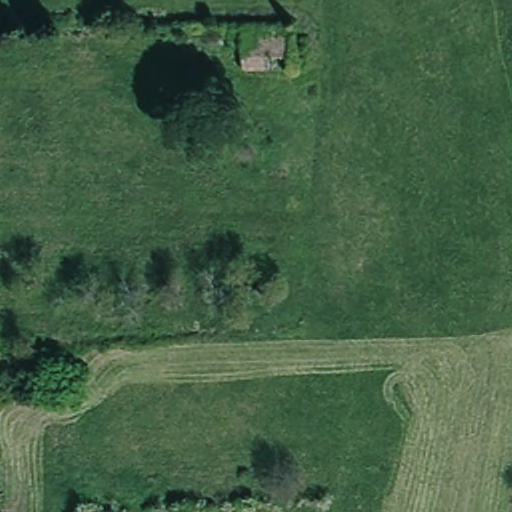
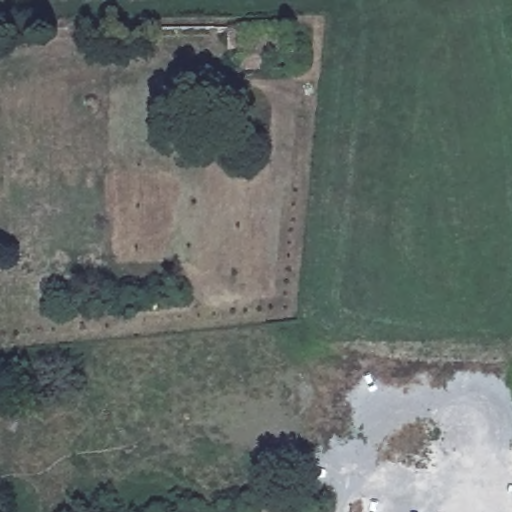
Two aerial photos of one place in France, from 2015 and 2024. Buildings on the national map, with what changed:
unchanged [(292,29),(285,73),(232,71),(245,27),(292,29)]

